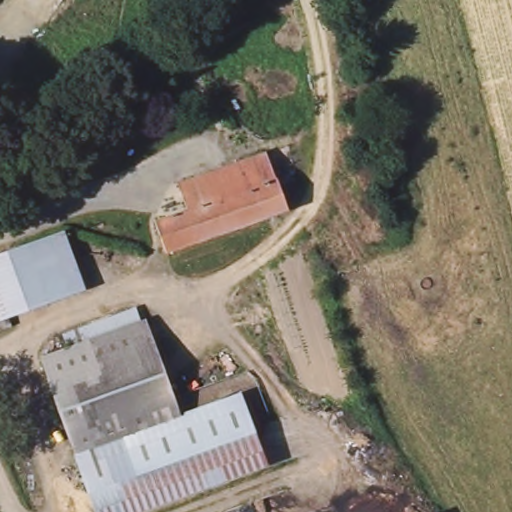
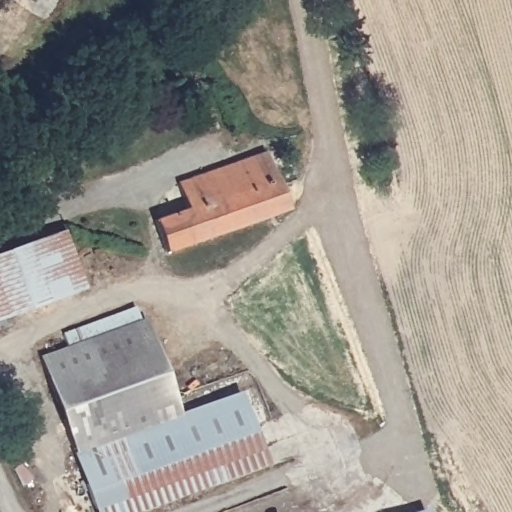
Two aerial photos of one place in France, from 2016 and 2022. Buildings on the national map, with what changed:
unchanged [(265,150),(287,209),(161,255),(150,220),(181,210),(172,183),(265,150)]
unchanged [(86,290),(0,322),(0,253),(64,230),(86,290)]
unchanged [(67,442),(36,357),(64,348),(59,337),(130,309),(135,321),(145,317),(180,416),(67,442)]
unchanged [(240,391),(270,475),(146,512),(94,512),(67,442),(180,416),(240,391)]

